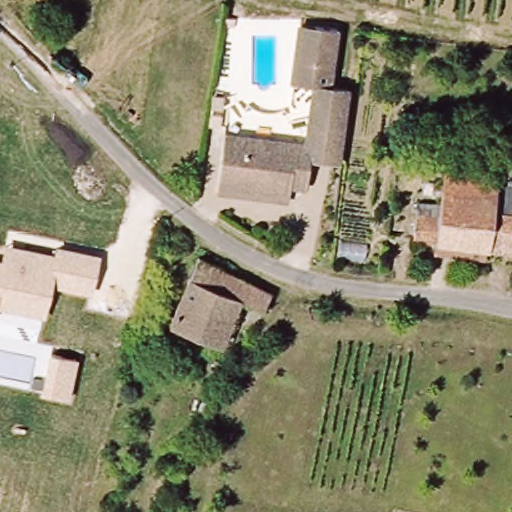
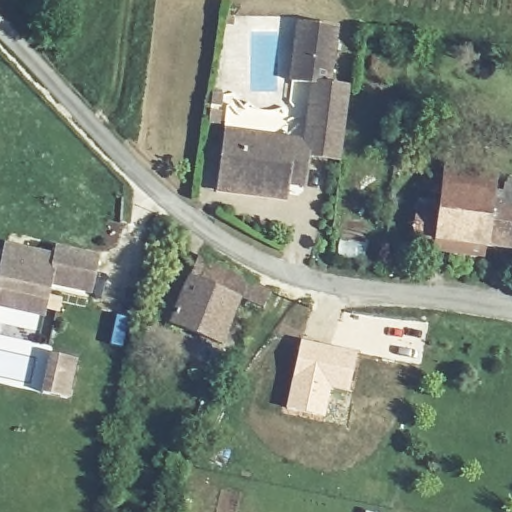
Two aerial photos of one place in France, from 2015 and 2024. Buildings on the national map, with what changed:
unchanged [(220,135),(234,137),(291,145),(299,86),(289,85),(292,62),(296,25),(311,27),(335,30),(328,89),(347,92),(338,162),(307,158),(303,188),(287,186),(286,198),(226,190),(214,188),(220,135)]
unchanged [(512,132),(512,158),(504,157),(508,131),(512,132)]
unchanged [(491,176),(489,197),(437,191),(440,171),(491,176)]
unchanged [(410,209),(419,210),(418,214),(434,216),(437,191),(489,197),(503,198),(505,182),(512,184),(512,253),(408,240),(410,209)]
unchanged [(99,255),(92,294),(51,287),(44,318),(0,308),(0,259),(2,259),(4,244),(54,254),(56,247),(99,255)]
unchanged [(265,307),(237,296),(218,343),(167,322),(194,259),(270,294),(265,307)]
new [(299,339),(357,351),(348,391),(331,387),(323,417),(284,409),(299,339)]
unchanged [(78,360),(69,401),(40,395),(48,354),(78,360)]

